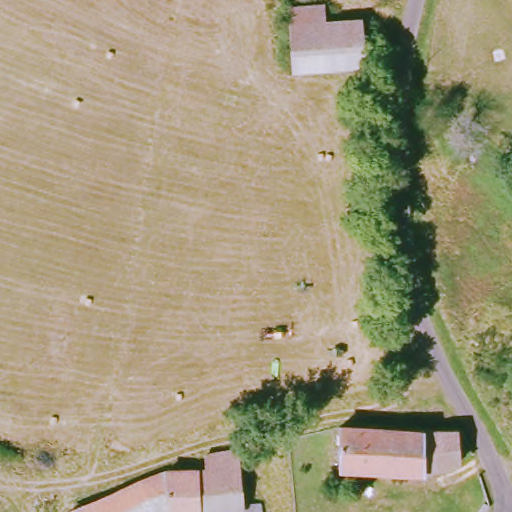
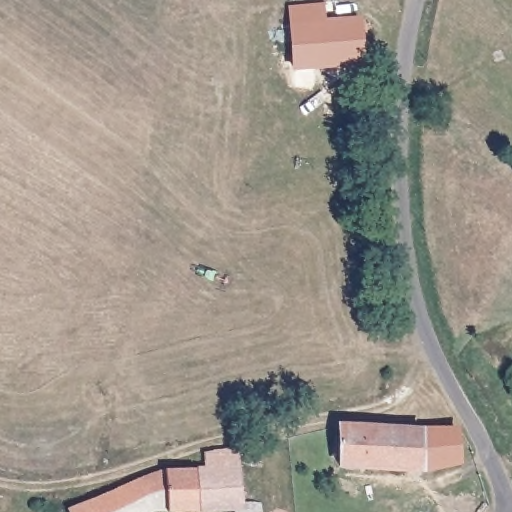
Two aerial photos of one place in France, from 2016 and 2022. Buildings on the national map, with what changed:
unchanged [(353,65),(285,70),(284,26),(283,11),(316,5),(316,24),(351,22),(353,65)]
unchanged [(421,432),(423,472),(339,468),(338,463),(336,436),(336,427),(421,432)]
unchanged [(455,431),(457,465),(423,472),(421,432),(455,431)]
unchanged [(233,511),(228,511),(218,512),(197,512),(193,470),(201,470),(201,455),(233,450),(241,506),(259,503),(260,512),(233,512),(233,511)]
unchanged [(197,512),(166,512),(165,510),(157,508),(150,512),(66,512),(160,473),(193,470),(197,512)]

